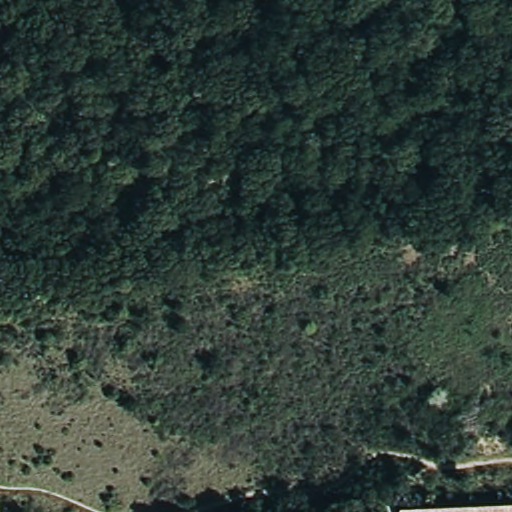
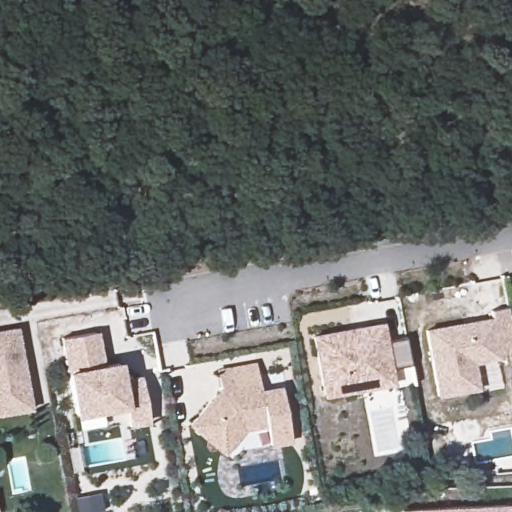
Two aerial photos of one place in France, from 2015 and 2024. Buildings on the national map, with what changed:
new [(489,311),(509,307),(511,321),(512,321),(512,354),(499,357),(491,318),(489,311)]
new [(463,391),(439,395),(426,330),(465,323),(475,321),(491,318),(499,357),(473,362),(475,372),(478,387),(463,391)]
new [(395,386),(323,398),(311,336),(384,322),(388,343),(405,340),(410,365),(392,368),(395,386)]
new [(31,410),(0,416),(0,331),(17,328),(31,410)]
new [(98,332),(105,365),(119,362),(123,378),(140,376),(148,424),(129,428),(125,407),(75,418),(65,373),(60,339),(98,332)]
new [(213,443),(191,425),(211,401),(220,391),(216,372),(255,364),(260,392),(281,388),(291,440),(269,444),(266,425),(243,429),(235,438),(223,452),(213,443)]
unchanged [(398,512),(397,505),(512,500),(512,512),(398,512)]

